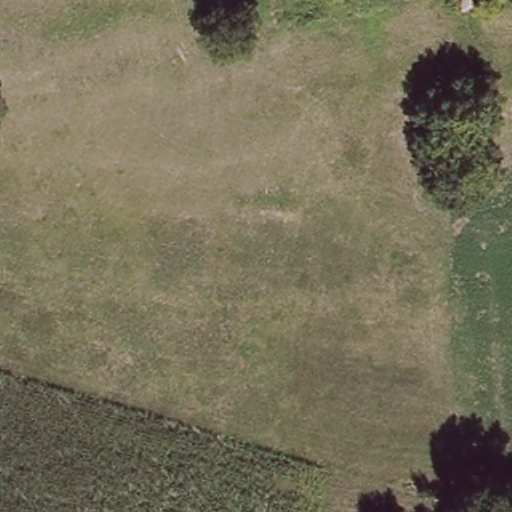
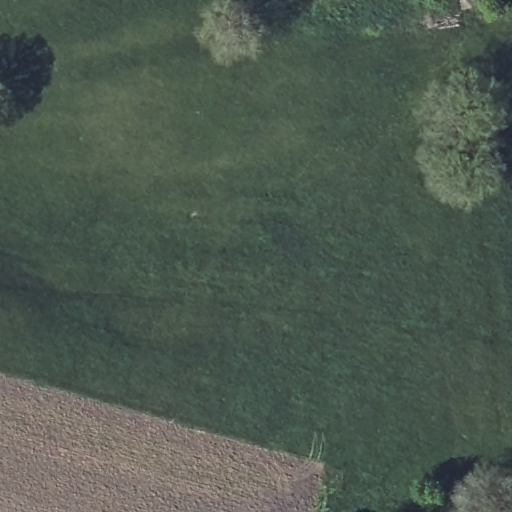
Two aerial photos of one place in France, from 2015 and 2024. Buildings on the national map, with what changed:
[]

